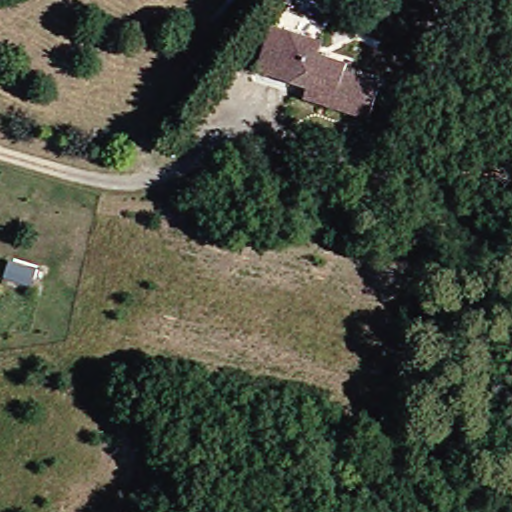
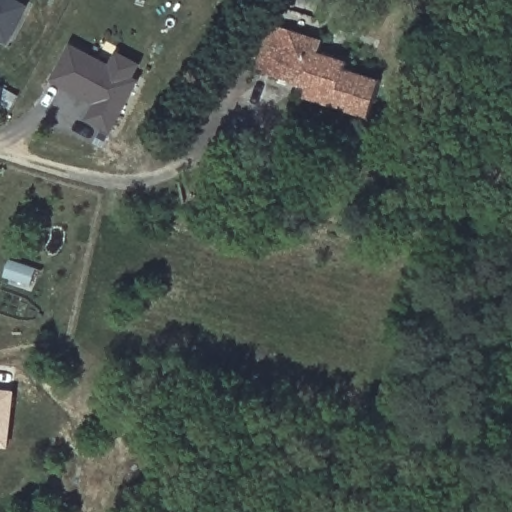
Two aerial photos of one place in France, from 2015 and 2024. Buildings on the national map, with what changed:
new [(9,45),(0,41),(0,0),(17,0),(30,7),(9,45)]
unchanged [(313,86),(277,76),(288,31),(309,36),(325,40),(322,52),(347,59),(346,69),(383,75),(372,112),(337,103),(312,98),(313,86)]
new [(86,121),(94,105),(52,82),(71,44),(110,65),(117,51),(143,65),(112,135),(86,121)]
new [(9,450),(0,449),(0,390),(15,391),(9,450)]

